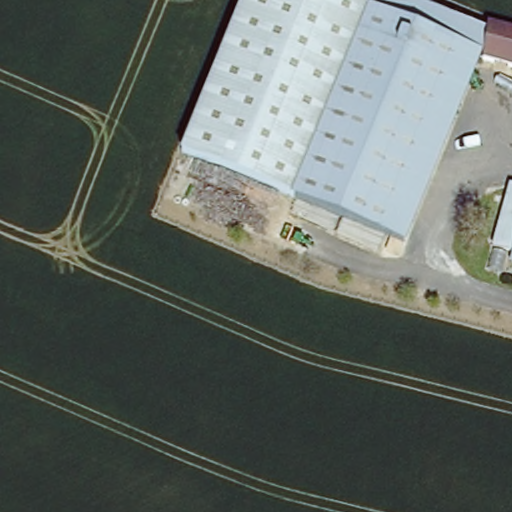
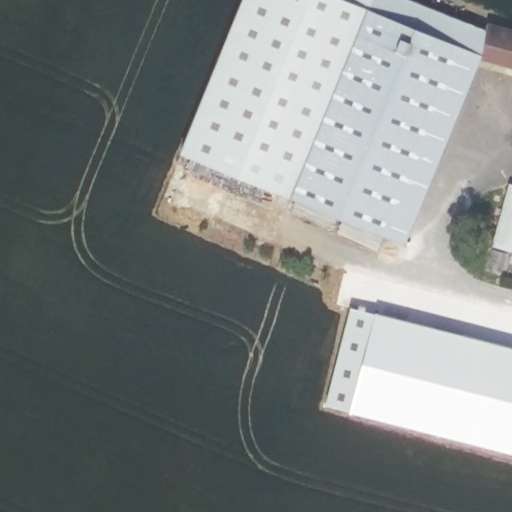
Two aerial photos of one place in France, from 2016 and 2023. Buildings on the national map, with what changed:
unchanged [(290,200),(179,155),(242,0),(373,0),(290,200)]
unchanged [(373,0),(408,0),(487,33),(478,58),(403,247),(290,200),(373,0)]
unchanged [(492,23),(512,29),(512,67),(478,58),(487,33),(492,23)]
unchanged [(502,190),(512,193),(512,260),(485,252),(502,190)]
new [(512,349),(512,451),(350,410),(375,315),(512,349)]

